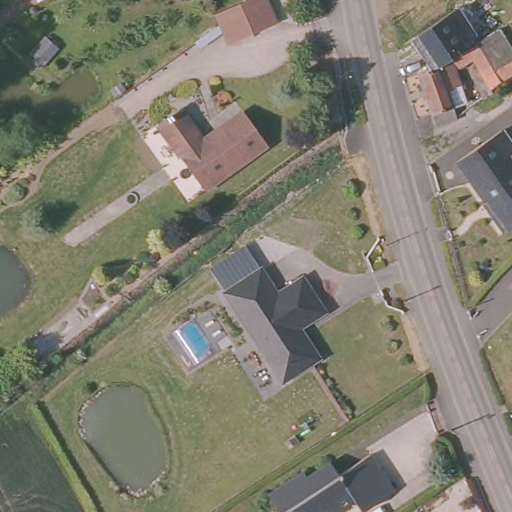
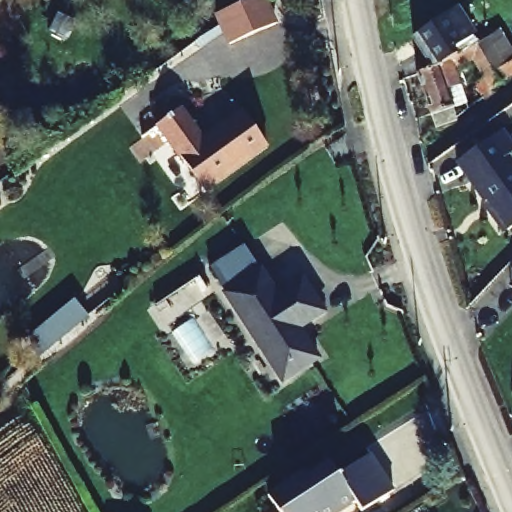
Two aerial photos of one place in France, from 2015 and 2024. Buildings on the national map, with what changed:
unchanged [(232,0),(265,0),(273,16),(226,39),(216,13),(214,9),(232,0)]
unchanged [(468,12),(456,19),(464,34),(446,47),(449,53),(426,67),(406,38),(461,0),(488,0),(469,13),(468,12)]
unchanged [(481,34),(476,24),(512,1),(512,14),(509,16),(481,34)]
unchanged [(512,21),(512,71),(505,75),(481,34),(509,16),(512,21)]
unchanged [(428,126),(424,114),(409,73),(426,67),(449,53),(469,41),(495,81),(484,88),(485,92),(475,98),(470,89),(480,82),(465,58),(447,70),(457,103),(445,107),(449,119),(428,126)]
unchanged [(179,111),(200,143),(241,116),(264,150),(200,194),(155,127),(179,111)]
unchanged [(512,147),(512,148),(505,153),(512,164),(512,224),(503,230),(454,160),(499,128),(512,147)]
unchanged [(227,289),(262,265),(278,291),(303,275),(324,308),(299,325),(317,354),(283,377),(227,289)]
unchanged [(512,277),(512,287),(507,282),(512,277)]
new [(39,357),(33,349),(41,342),(33,333),(75,298),(89,316),(39,357)]
unchanged [(286,508),(273,490),(308,465),(312,470),(334,456),(342,468),(372,447),(397,483),(366,504),(359,494),(333,512),(281,512),(286,508)]

